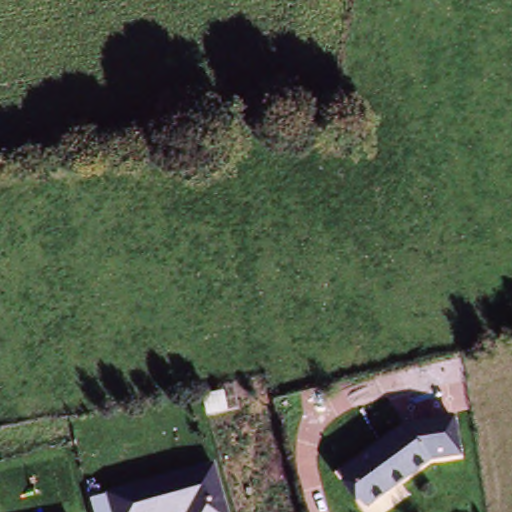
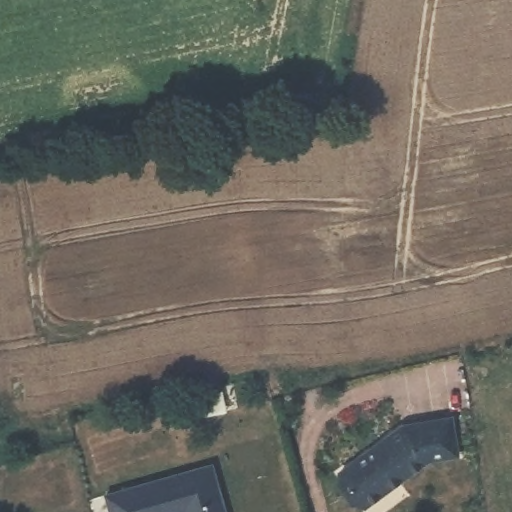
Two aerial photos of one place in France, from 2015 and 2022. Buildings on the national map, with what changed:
unchanged [(398,431),(420,423),(455,422),(460,461),(435,465),(370,511),(346,475),(398,431)]
unchanged [(213,469),(226,512),(112,512),(109,500),(213,469)]

